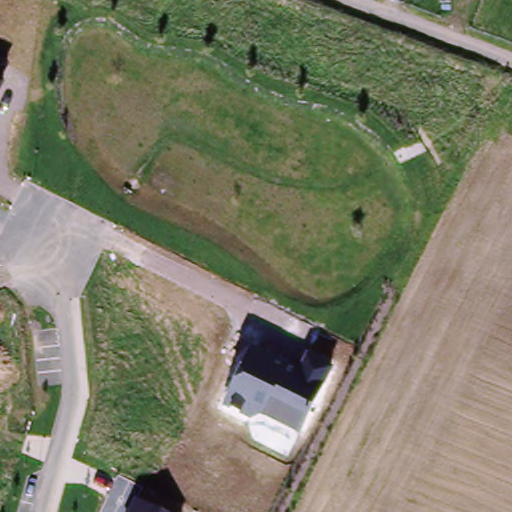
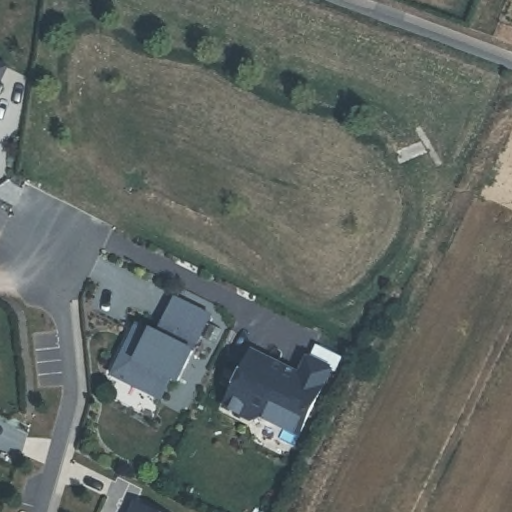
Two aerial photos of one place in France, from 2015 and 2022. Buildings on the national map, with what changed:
unchanged [(7,66),(0,82),(0,62),(7,66)]
unchanged [(6,85),(0,96),(0,83),(6,85)]
new [(130,335),(137,321),(150,327),(158,331),(175,296),(211,313),(179,379),(172,376),(162,397),(125,379),(112,372),(120,357),(130,335)]
unchanged [(297,373),(305,356),(334,368),(301,436),(260,417),(251,422),(223,409),(249,351),(297,373)]
unchanged [(137,499),(164,512),(130,512),(137,499)]

